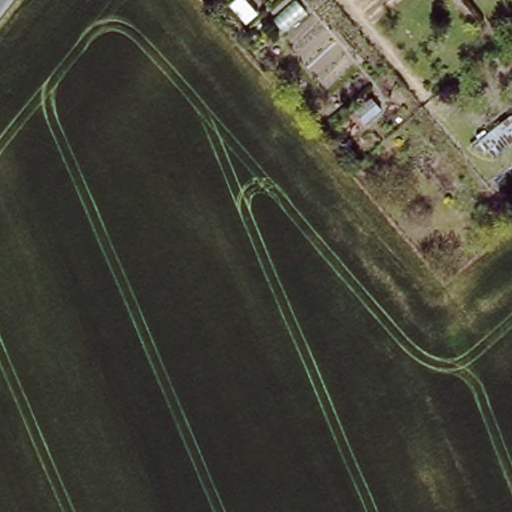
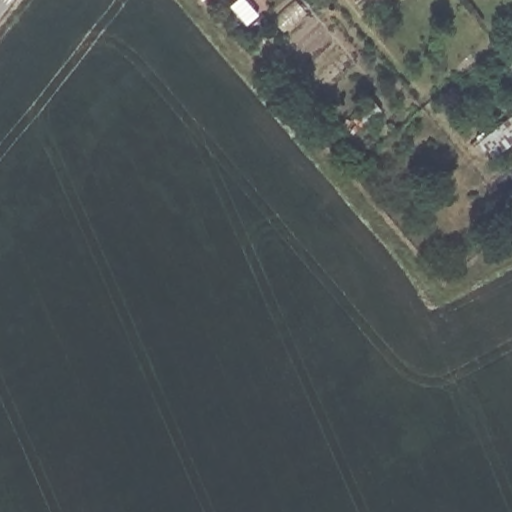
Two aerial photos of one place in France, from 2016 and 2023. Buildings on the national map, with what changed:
unchanged [(243,0),(248,0),(261,16),(250,25),(235,7),(243,0)]

